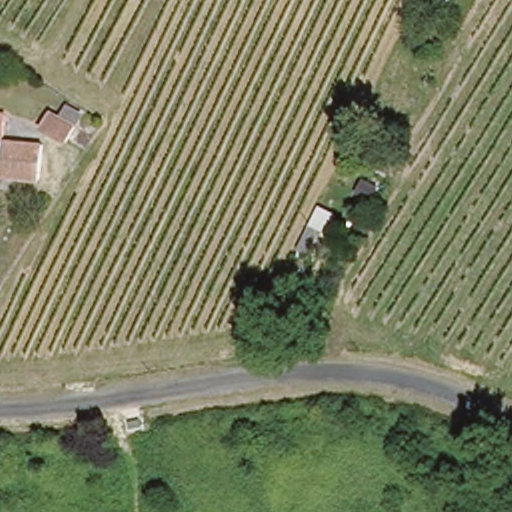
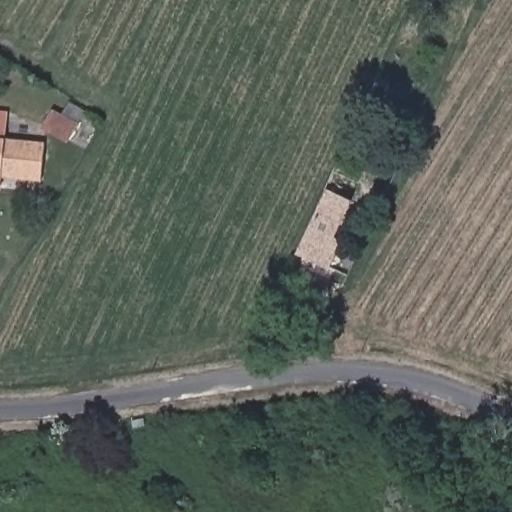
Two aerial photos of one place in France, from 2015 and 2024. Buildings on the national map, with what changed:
unchanged [(31,130),(40,113),(68,130),(57,147),(31,130)]
unchanged [(293,252),(306,229),(314,213),(331,221),(323,237),(311,262),(293,252)]

